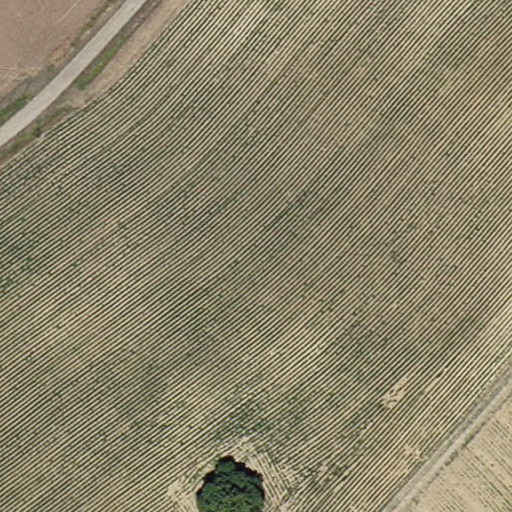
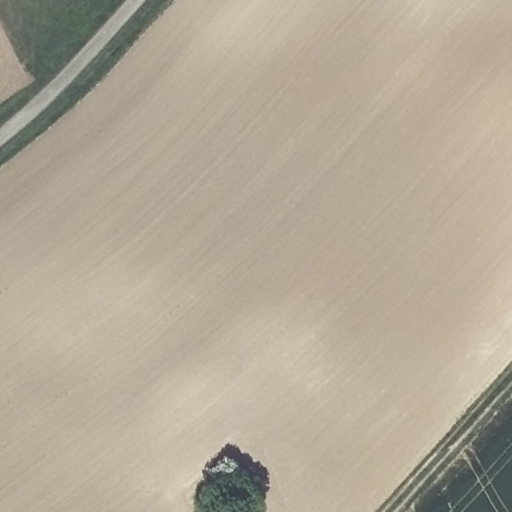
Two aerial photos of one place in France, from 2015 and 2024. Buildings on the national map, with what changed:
[]

